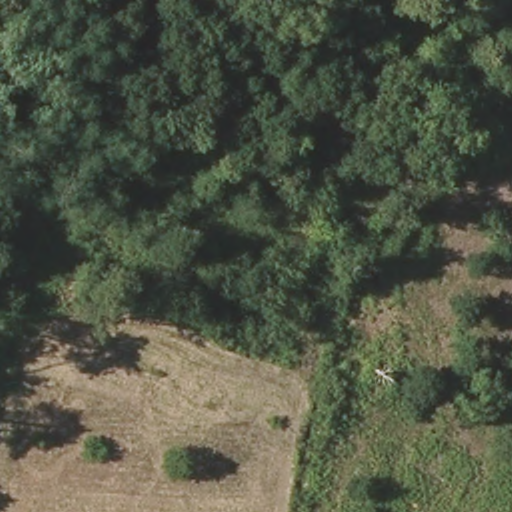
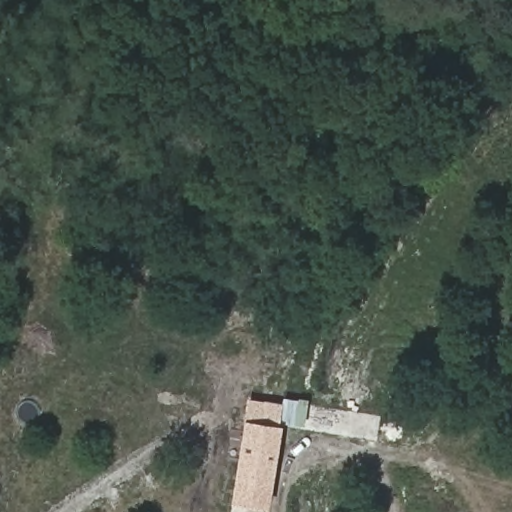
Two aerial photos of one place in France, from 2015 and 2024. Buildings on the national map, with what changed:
new [(282,405),(283,399),(306,401),(306,425),(281,425),(268,510),(230,504),(246,400),(282,405)]

